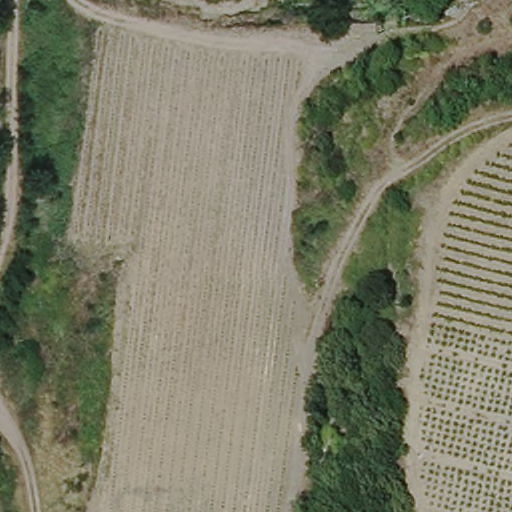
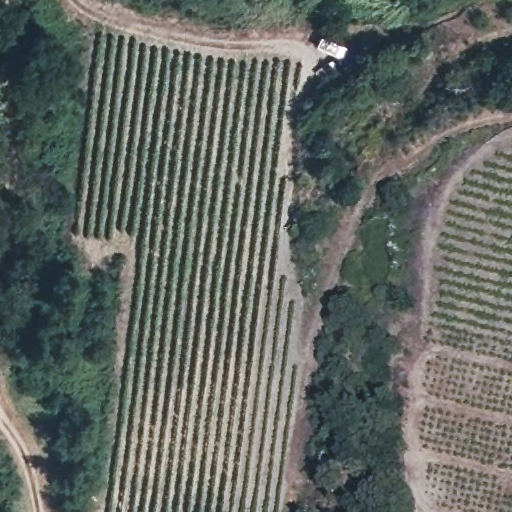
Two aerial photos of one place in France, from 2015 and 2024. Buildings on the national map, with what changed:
unchanged [(345,440),(334,465),(325,457),(335,436),(345,440)]

